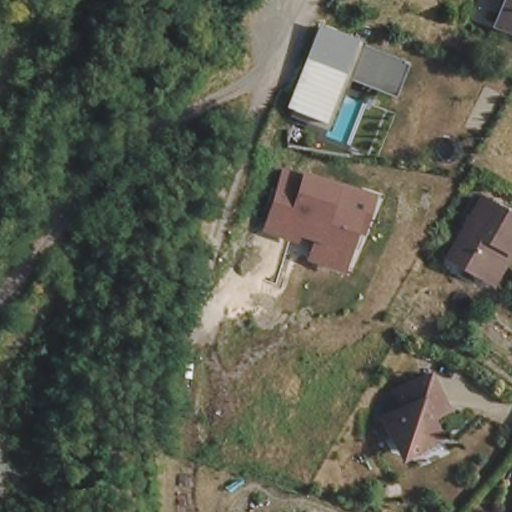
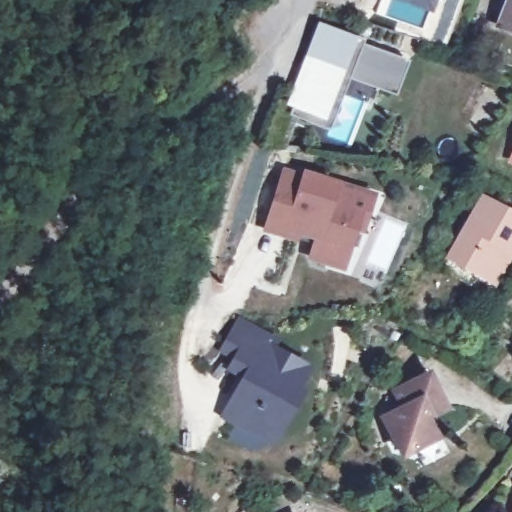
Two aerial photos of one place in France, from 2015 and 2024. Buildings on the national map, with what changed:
new [(428,7),(422,30),(376,12),(379,0),(430,0),(428,7)]
unchanged [(499,18),(508,0),(512,0),(512,24),(499,18)]
unchanged [(319,24),(356,40),(408,61),(395,97),(346,78),(327,121),(324,130),(291,117),(295,110),(286,106),(319,24)]
new [(511,159),(512,156),(512,160),(511,159)]
unchanged [(302,174),(304,171),(341,183),(376,195),(364,234),(359,233),(346,273),(307,262),(314,243),(299,238),(298,244),(261,235),(284,168),(302,174)]
unchanged [(482,277),(444,255),(478,194),(512,214),(512,248),(509,252),(492,282),(482,277)]
new [(241,379),(226,371),(232,359),(218,352),(236,316),(279,339),(276,345),(314,365),(303,388),(308,391),(275,450),(219,417),(241,379)]
unchanged [(404,393),(396,379),(433,361),(449,395),(434,403),(444,422),(416,436),(401,433),(394,422),(384,402),(404,393)]
new [(432,512),(436,510),(437,512),(432,512)]

